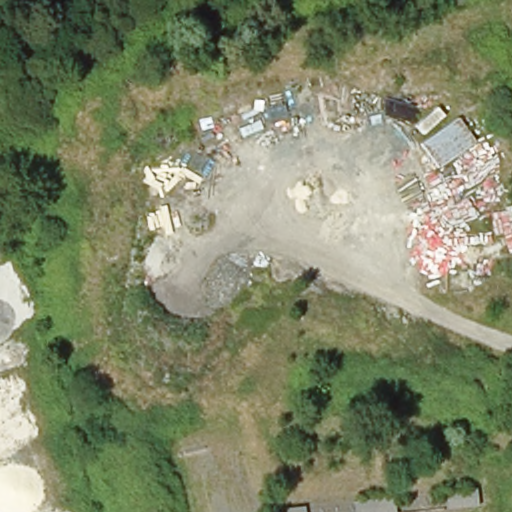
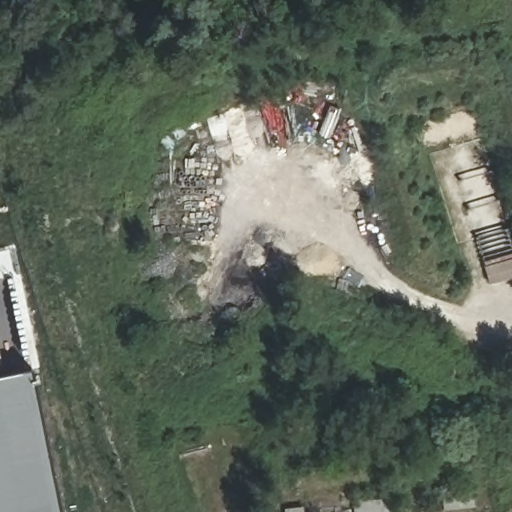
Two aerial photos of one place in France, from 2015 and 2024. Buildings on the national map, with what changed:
demolished [(512,232),(512,259),(498,263),(492,235),(512,232)]
new [(66,512),(0,512),(0,379),(36,371),(66,512)]
unchanged [(485,481),(486,503),(443,510),(441,489),(485,481)]
unchanged [(395,512),(350,512),(350,501),(394,489),(395,512)]
unchanged [(312,512),(279,512),(276,501),(312,501),(312,512)]

